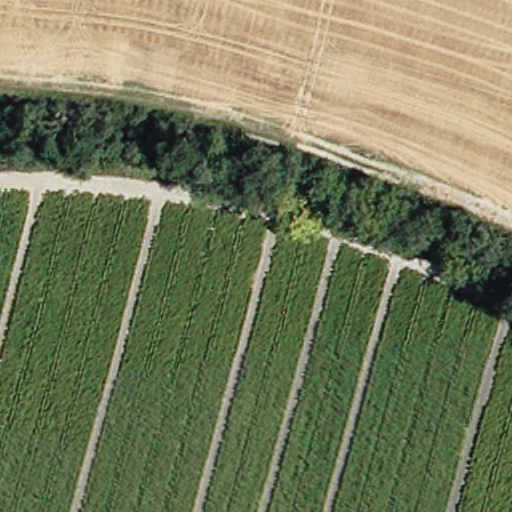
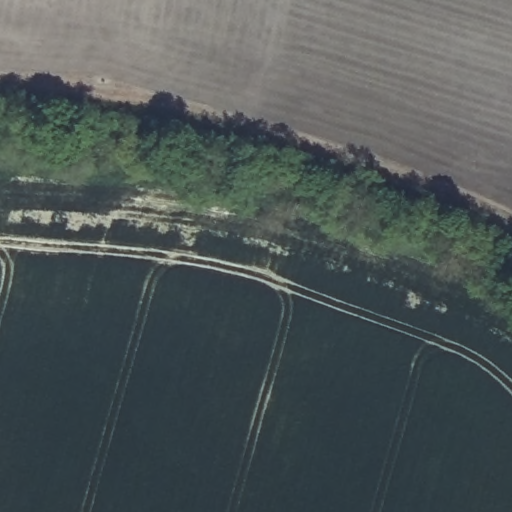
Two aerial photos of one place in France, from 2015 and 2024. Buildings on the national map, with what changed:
[]

